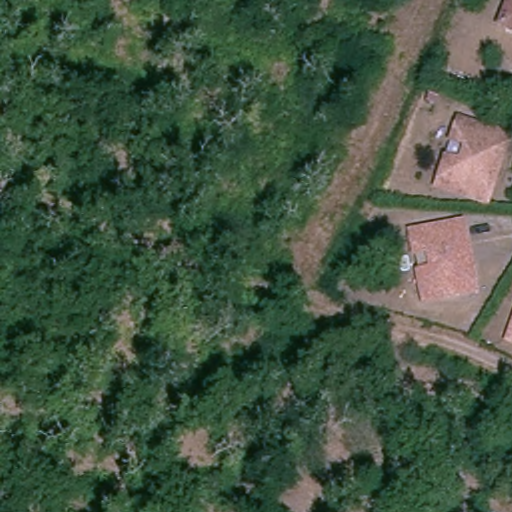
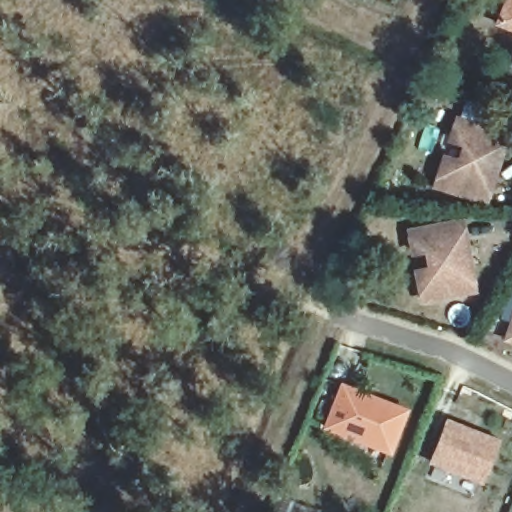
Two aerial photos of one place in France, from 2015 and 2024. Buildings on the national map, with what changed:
unchanged [(501,15),(508,0),(512,0),(512,20),(501,15)]
unchanged [(512,136),(486,203),(437,184),(447,159),(458,162),(466,142),(455,138),(463,117),(512,136)]
unchanged [(470,218),(479,289),(426,299),(421,266),(434,264),(431,245),(418,248),(416,228),(470,218)]
new [(341,383),(408,410),(389,456),(323,429),(341,383)]
new [(428,464),(446,420),(499,440),(479,483),(428,464)]

